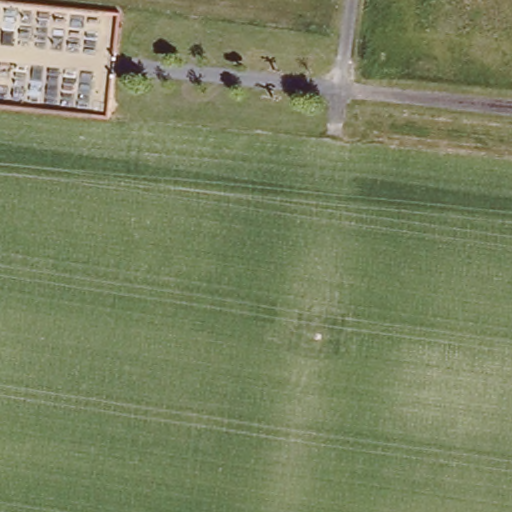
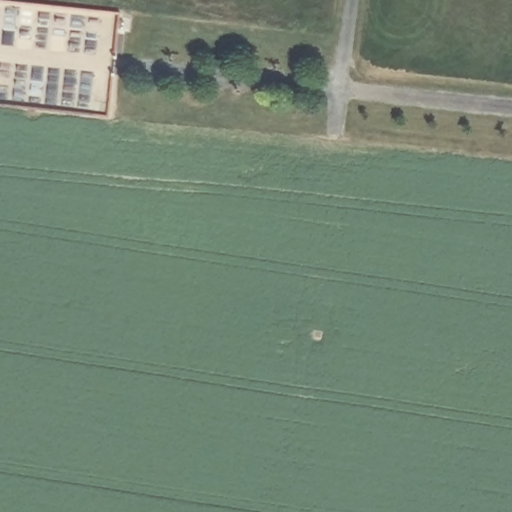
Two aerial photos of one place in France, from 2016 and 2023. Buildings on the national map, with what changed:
[]

